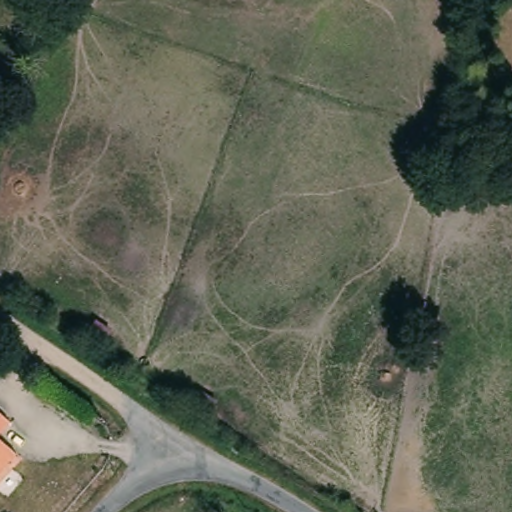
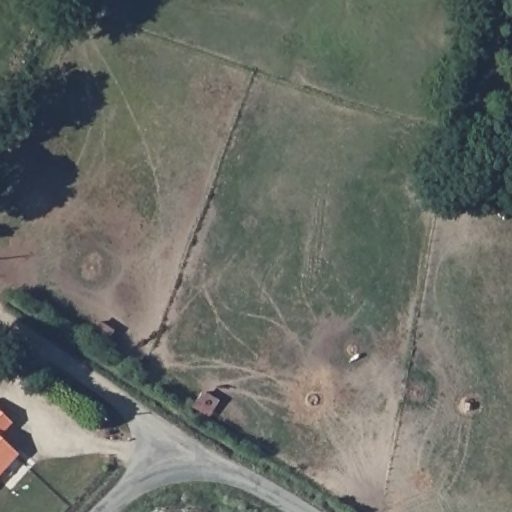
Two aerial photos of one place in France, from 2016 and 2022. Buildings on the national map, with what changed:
unchanged [(0,435),(0,410),(12,421),(0,435)]
unchanged [(0,473),(0,437),(19,453),(0,473)]

